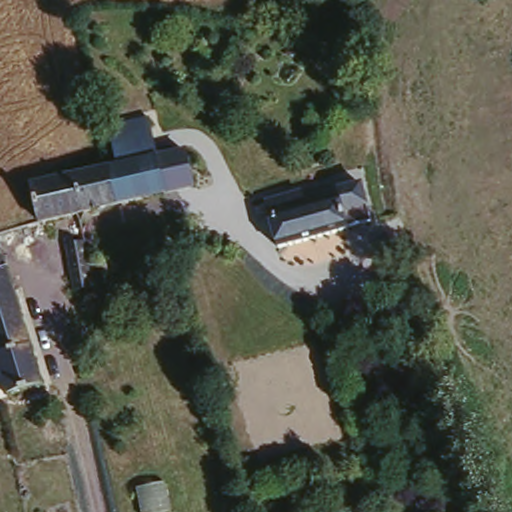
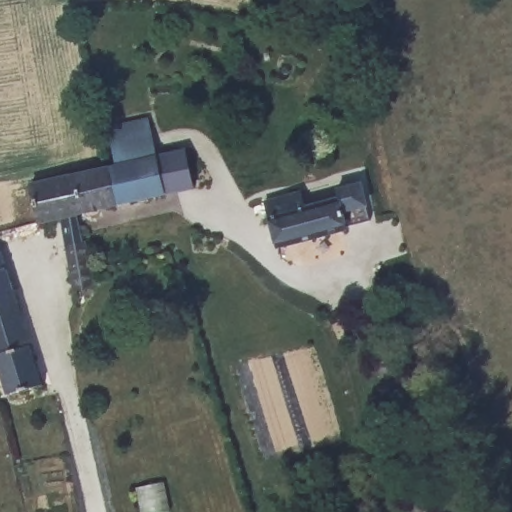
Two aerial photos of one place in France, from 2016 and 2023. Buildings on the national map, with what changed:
unchanged [(232,106),(234,119),(222,121),(219,111),(232,106)]
unchanged [(149,115),(157,153),(166,192),(76,212),(68,174),(116,164),(109,126),(149,115)]
unchanged [(157,153),(185,146),(194,186),(166,192),(157,153)]
unchanged [(32,182),(68,174),(76,212),(41,221),(32,182)]
unchanged [(278,244),(270,214),(337,194),(347,226),(278,244)]
unchanged [(64,246),(82,241),(85,255),(88,269),(70,273),(64,246)]
unchanged [(0,373),(0,251),(1,251),(45,381),(6,392),(0,373)]

